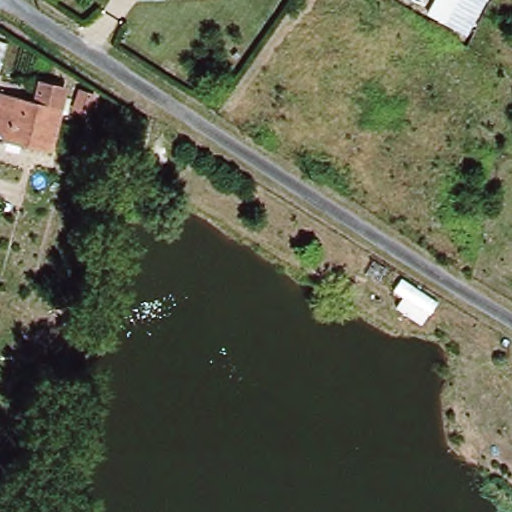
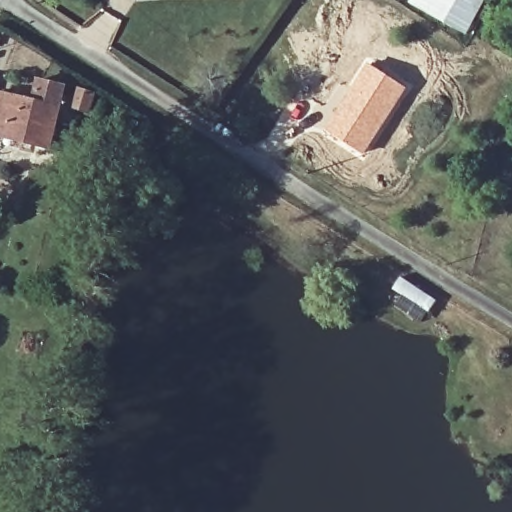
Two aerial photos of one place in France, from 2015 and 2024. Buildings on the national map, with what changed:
unchanged [(425,17),(436,0),(473,0),(457,35),(425,17)]
new [(366,62),(407,88),(363,155),(322,129),(366,62)]
unchanged [(52,157),(29,154),(29,147),(5,144),(12,94),(34,95),(37,73),(65,77),(52,157)]

